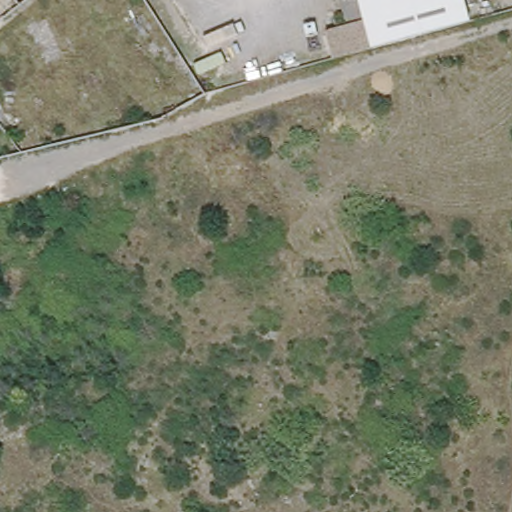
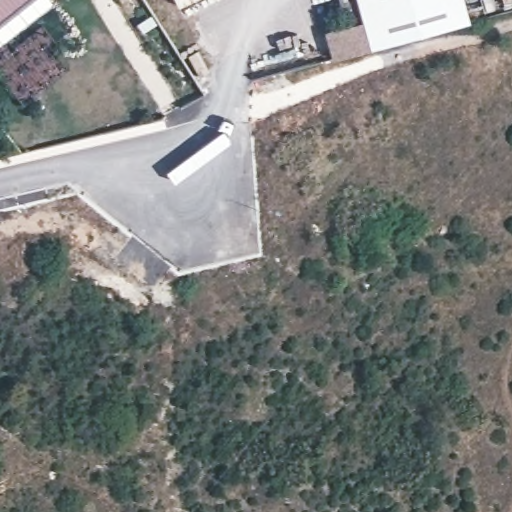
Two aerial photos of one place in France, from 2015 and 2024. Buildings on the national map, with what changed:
new [(0,22),(0,0),(28,0),(0,22)]
unchanged [(326,32),(345,26),(338,0),(463,0),(469,19),(368,47),(336,57),(326,32)]

